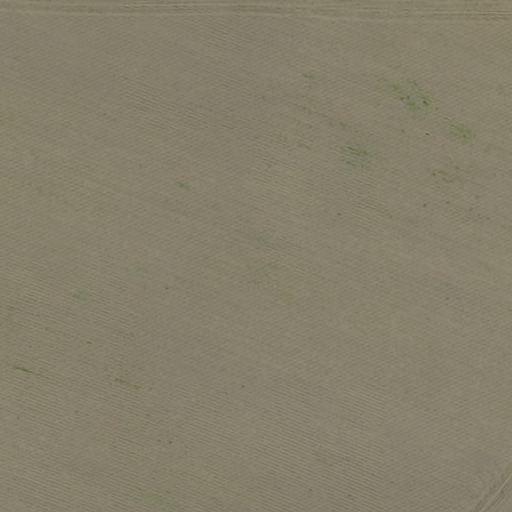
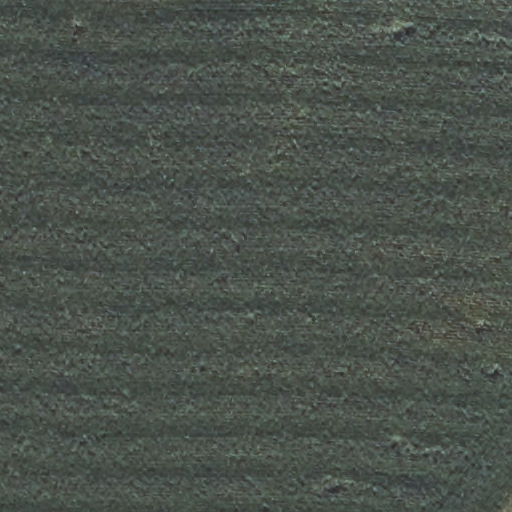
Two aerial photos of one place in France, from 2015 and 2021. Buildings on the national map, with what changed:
[]

